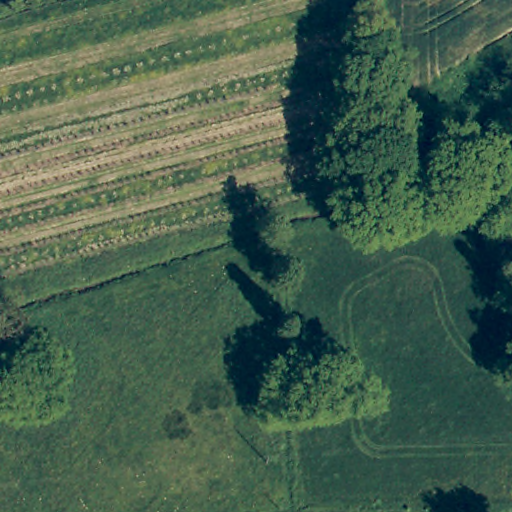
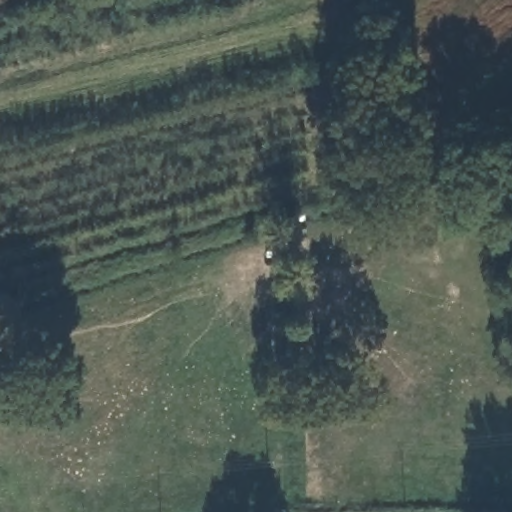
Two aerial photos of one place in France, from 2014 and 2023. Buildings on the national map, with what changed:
[]

